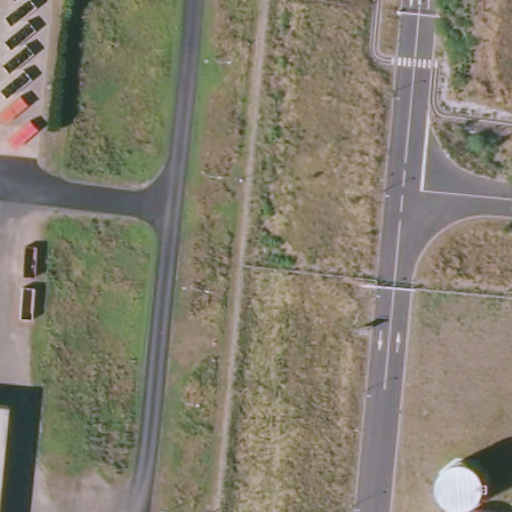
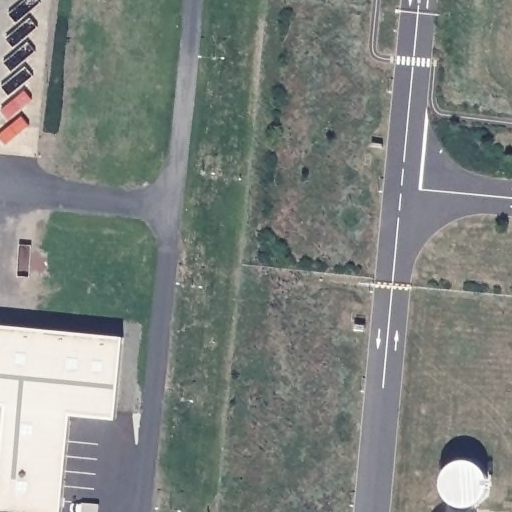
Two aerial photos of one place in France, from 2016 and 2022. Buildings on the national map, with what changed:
new [(116,419),(71,414),(62,512),(5,512),(0,511),(0,445),(4,404),(0,404),(0,325),(124,337),(116,419)]
unchanged [(0,404),(4,404),(0,444),(0,404)]

